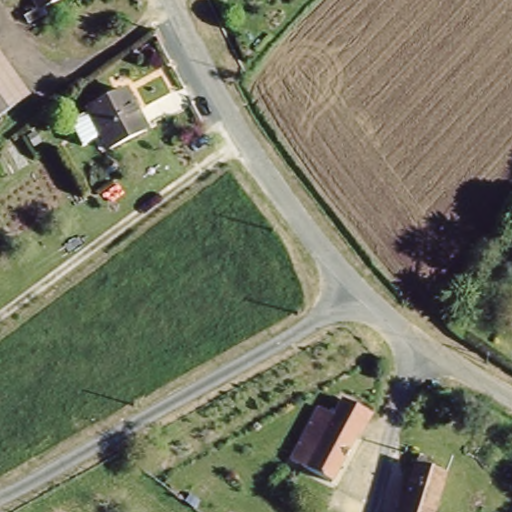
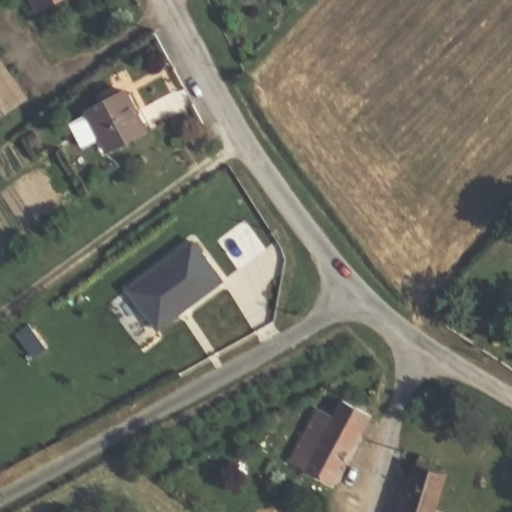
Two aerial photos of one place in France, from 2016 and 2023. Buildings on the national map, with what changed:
unchanged [(34,0),(50,0),(37,6),(34,0)]
unchanged [(0,59),(25,95),(0,113),(0,59)]
unchanged [(143,130),(104,149),(85,110),(123,91),(143,130)]
new [(158,332),(127,289),(195,240),(225,282),(158,332)]
unchanged [(289,457),(318,406),(335,416),(343,400),(370,415),(358,435),(331,481),(289,457)]
unchanged [(430,512),(395,512),(404,480),(398,478),(403,456),(425,464),(425,474),(440,479),(430,512)]

